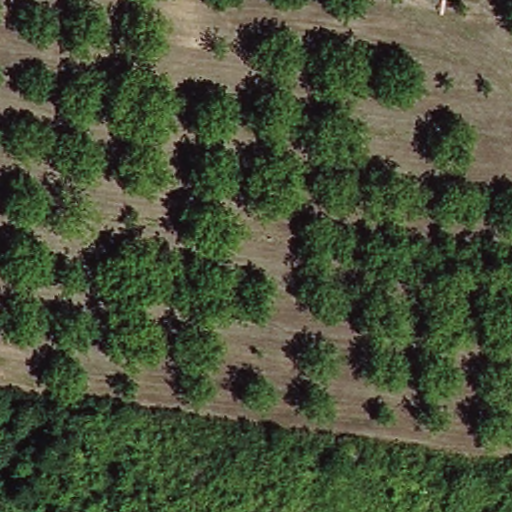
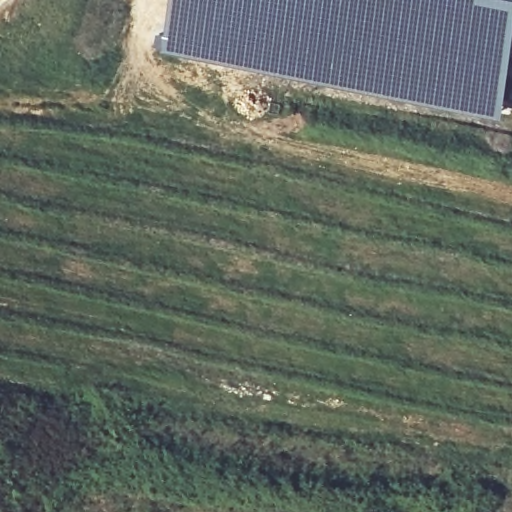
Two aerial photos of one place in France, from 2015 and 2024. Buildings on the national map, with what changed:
new [(168,34),(174,0),(512,0),(512,78),(508,97),(501,121),(445,107),(155,49),(158,32),(168,34)]

